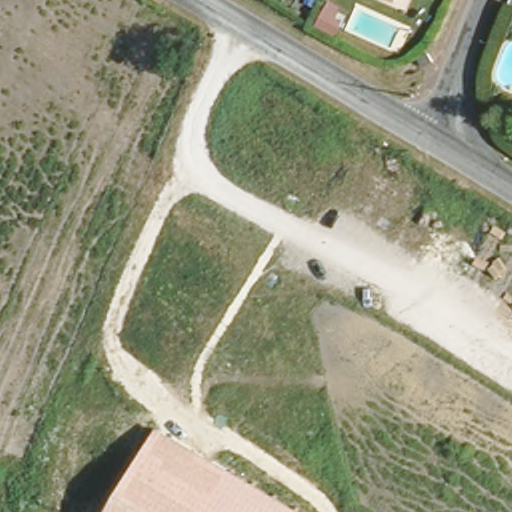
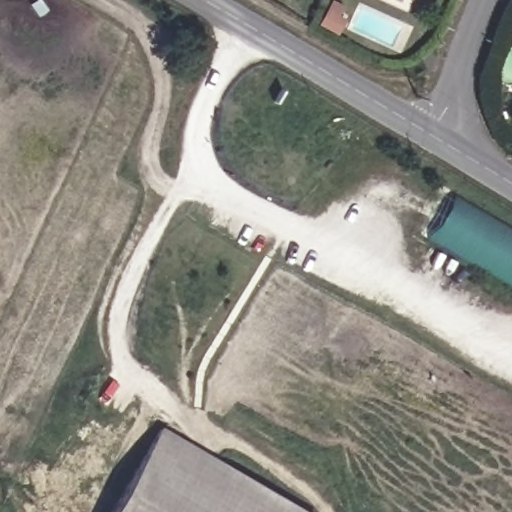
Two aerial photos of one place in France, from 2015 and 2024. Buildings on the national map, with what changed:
unchanged [(400,11),(374,0),(404,0),(400,11)]
new [(415,231),(441,186),(512,228),(512,288),(415,231)]
unchanged [(308,512),(114,512),(161,428),(308,512)]

